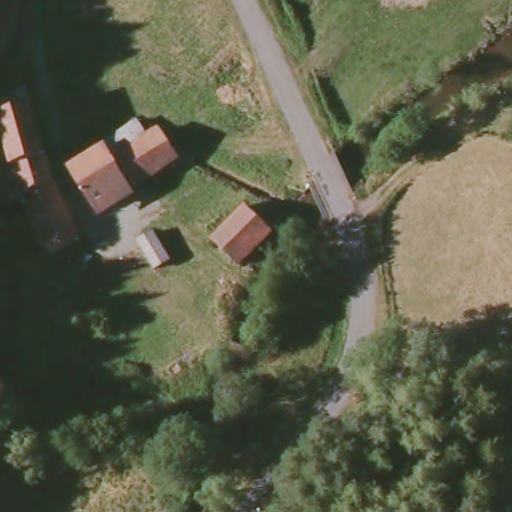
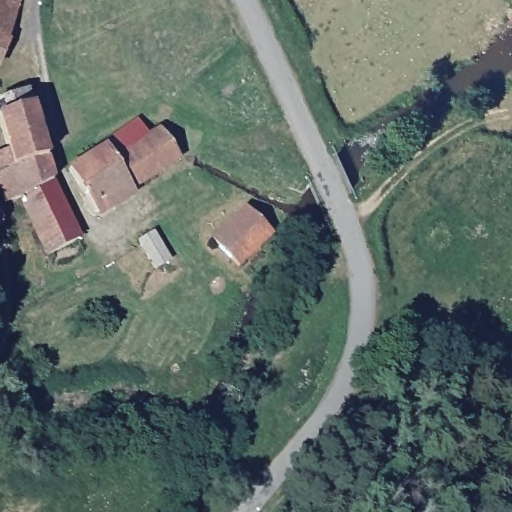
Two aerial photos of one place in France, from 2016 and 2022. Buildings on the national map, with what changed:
unchanged [(20,0),(24,1),(0,71),(0,0),(20,0)]
unchanged [(0,201),(0,168),(9,165),(0,129),(0,97),(27,91),(47,167),(77,240),(47,253),(18,194),(5,199),(0,201)]
unchanged [(107,153),(105,147),(142,127),(152,141),(162,135),(180,164),(116,205),(119,210),(102,220),(75,172),(107,153)]
unchanged [(257,199),(283,225),(250,258),(225,234),(257,199)]
unchanged [(154,232),(170,260),(156,268),(138,240),(154,232)]

